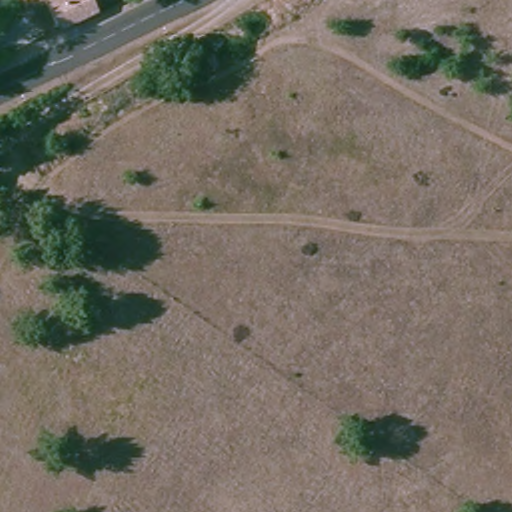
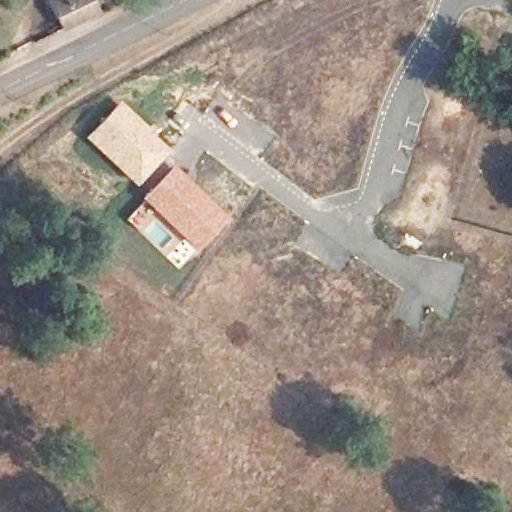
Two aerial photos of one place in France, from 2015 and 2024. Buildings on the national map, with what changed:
unchanged [(94,15),(60,29),(47,0),(88,0),(94,15)]
new [(119,99),(170,151),(135,187),(82,137),(119,99)]
new [(174,164),(227,216),(194,250),(140,198),(174,164)]

